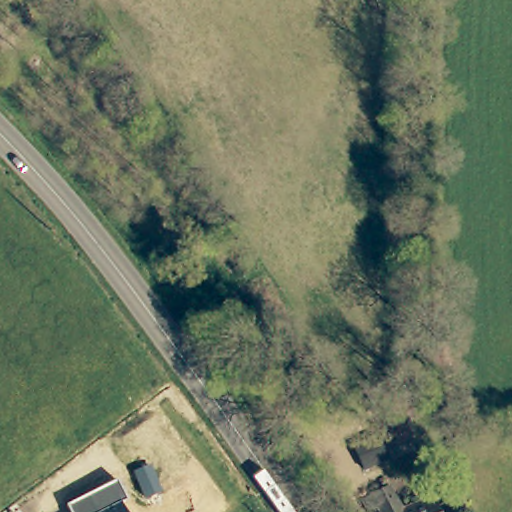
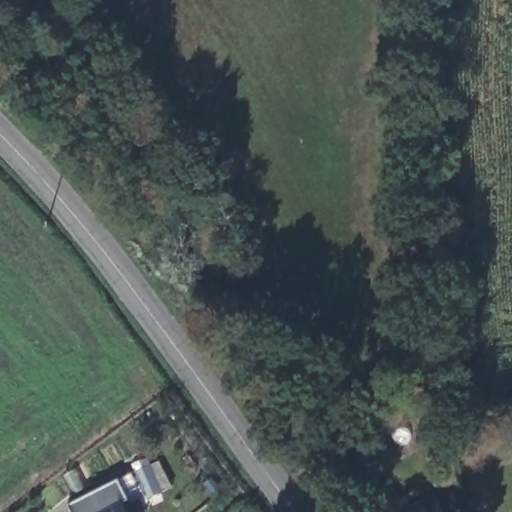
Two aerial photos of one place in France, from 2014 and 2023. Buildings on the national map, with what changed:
unchanged [(66,505),(117,480),(127,501),(122,504),(126,512),(69,512),(66,505)]
unchanged [(385,488),(405,510),(435,497),(441,512),(375,512),(374,512),(374,511),(374,512),(363,512),(358,504),(385,488)]

